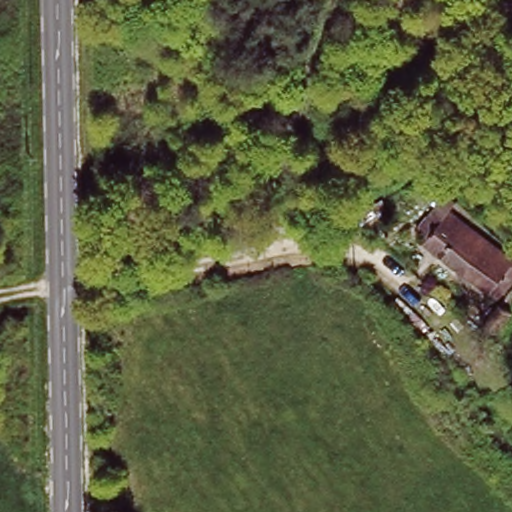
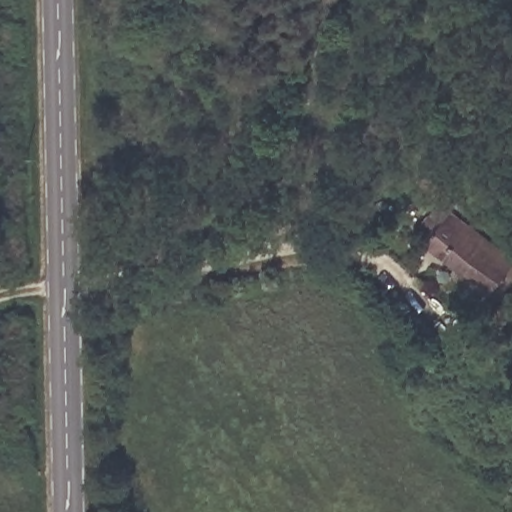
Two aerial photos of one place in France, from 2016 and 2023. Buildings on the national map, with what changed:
unchanged [(512,275),(504,283),(498,278),(485,293),(427,239),(432,233),(425,227),(437,216),(458,236),(462,230),(512,274),(512,275)]
unchanged [(498,307),(482,326),(476,320),(472,317),(488,298),(492,302),(498,307)]

